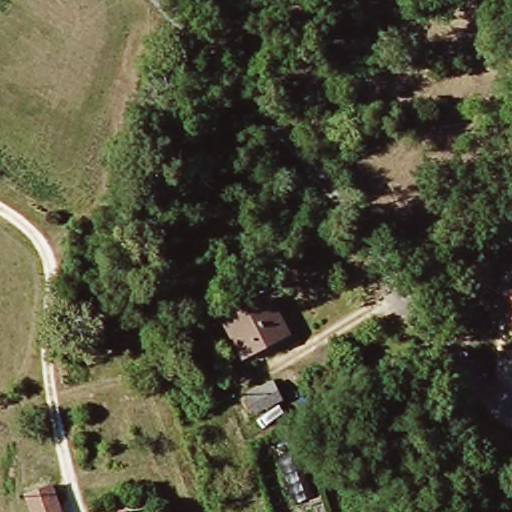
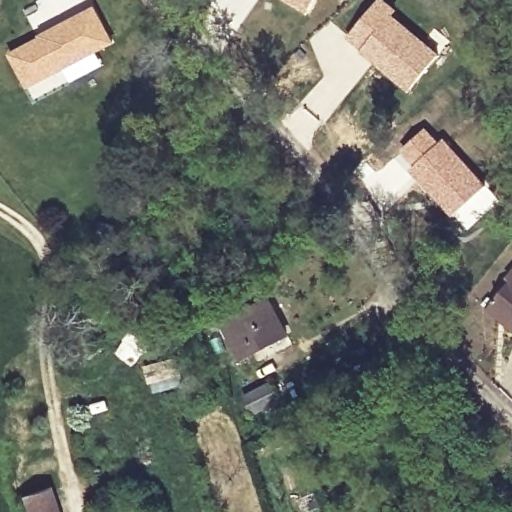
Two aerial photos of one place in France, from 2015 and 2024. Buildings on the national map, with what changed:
new [(289,0),(313,0),(307,11),(289,0)]
new [(387,0),(397,9),(393,13),(441,54),(408,92),(346,37),(376,0),(387,0)]
new [(49,27),(94,4),(115,43),(97,52),(27,91),(7,52),(49,27)]
new [(97,52),(104,64),(32,101),(27,91),(97,52)]
new [(467,231),(452,217),(398,152),(426,126),(440,141),(445,137),(487,185),(500,201),(467,231)]
unchanged [(508,278),(512,274),(512,283),(508,278)]
unchanged [(490,312),(496,305),(512,284),(512,329),(490,312)]
unchanged [(128,298),(140,303),(132,322),(120,317),(128,298)]
unchanged [(285,335),(243,357),(225,322),(267,301),(285,335)]
unchanged [(240,397),(267,386),(275,403),(250,417),(240,397)]
unchanged [(25,494),(52,486),(62,512),(32,512),(25,494)]
unchanged [(125,512),(106,512),(123,507),(125,512)]

